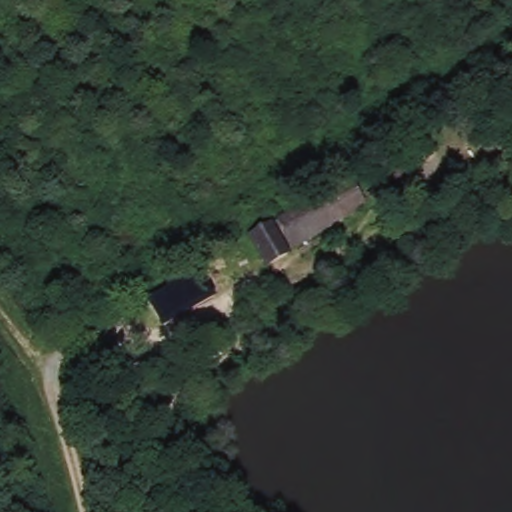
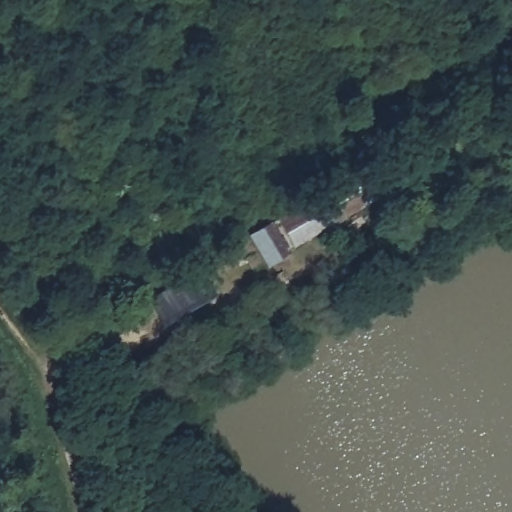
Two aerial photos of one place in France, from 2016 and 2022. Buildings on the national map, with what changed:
unchanged [(280,219),(315,197),(330,225),(295,246),(280,219)]
unchanged [(272,222),(288,249),(266,262),(250,235),(272,222)]

